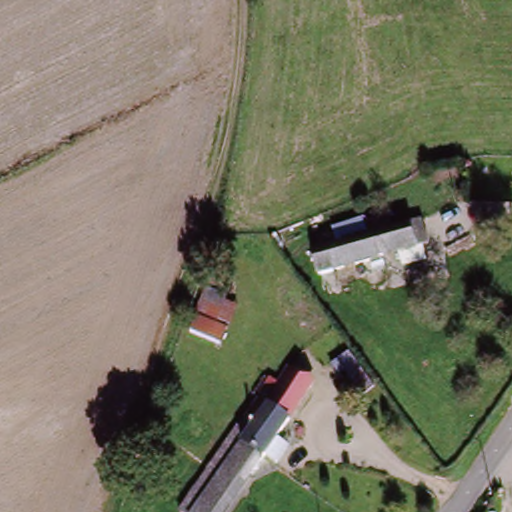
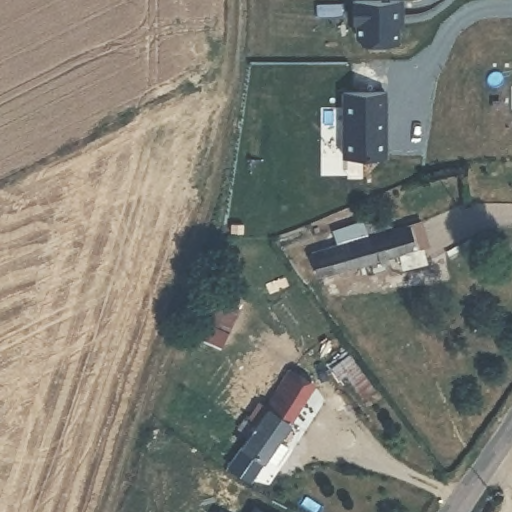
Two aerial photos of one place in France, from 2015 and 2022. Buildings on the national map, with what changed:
new [(404,0),(404,24),(400,24),(400,41),(365,42),(360,36),(360,20),(355,21),(355,0),(404,0)]
new [(387,155),(345,156),(344,92),(386,91),(387,155)]
unchanged [(427,252),(418,255),(425,274),(400,283),(391,259),(311,280),(302,253),(335,243),(332,237),(361,228),(365,237),(389,228),(391,233),(418,224),(427,252)]
unchanged [(194,332),(208,289),(247,303),(231,344),(194,332)]
unchanged [(269,403),(260,396),(273,378),(285,384),(296,368),(320,384),(302,409),(234,512),(199,512),(269,403)]

